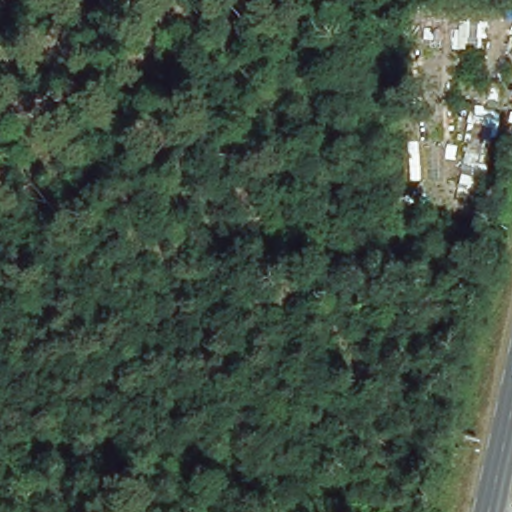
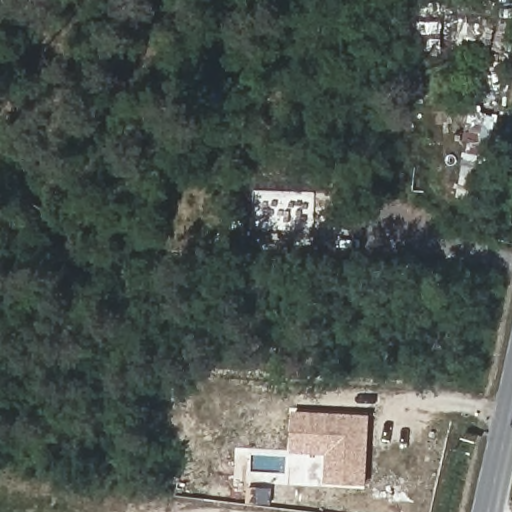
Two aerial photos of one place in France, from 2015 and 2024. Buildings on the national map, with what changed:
new [(368,416),(368,480),(325,478),(325,455),(292,453),(291,412),(368,416)]

